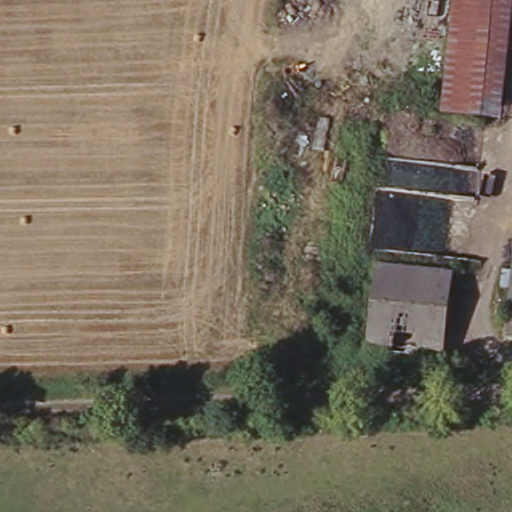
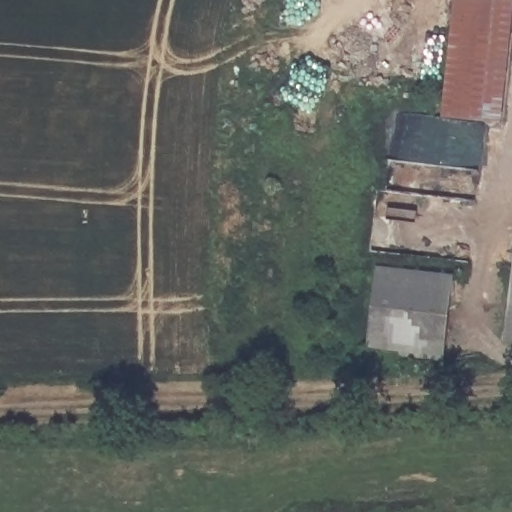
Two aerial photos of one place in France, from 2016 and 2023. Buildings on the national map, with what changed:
unchanged [(505,6),(496,124),(440,119),(440,116),(449,0),(505,6)]
unchanged [(362,355),(373,264),(450,271),(443,336),(441,363),(362,355)]

